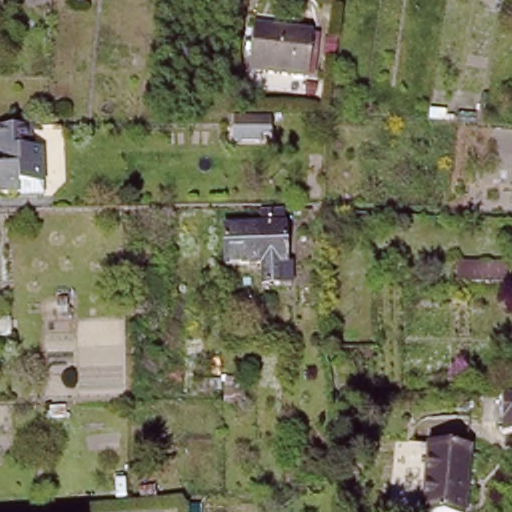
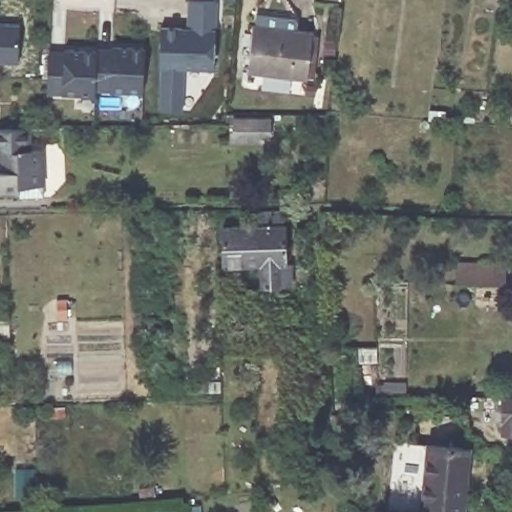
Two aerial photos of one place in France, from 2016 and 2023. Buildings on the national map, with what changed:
new [(213,70),(183,70),(181,110),(158,109),(161,26),(186,27),(188,1),(216,1),(213,70)]
unchanged [(246,74),(252,28),(269,30),(269,33),(296,36),(296,33),(304,34),(314,36),(308,81),(299,80),(246,74)]
new [(48,50),(63,50),(95,51),(95,46),(111,46),(111,45),(144,46),(143,93),(109,91),(109,89),(93,88),(93,95),(65,94),(62,92),(47,93),(48,50)]
new [(270,117),(271,137),(259,137),(259,143),(232,143),(231,117),(270,117)]
unchanged [(29,131),(30,151),(42,151),(43,186),(41,186),(42,194),(12,196),(11,195),(0,195),(0,132),(29,131)]
unchanged [(134,166),(133,186),(123,186),(123,166),(134,166)]
unchanged [(289,289),(259,291),(259,268),(220,266),(219,226),(284,223),(289,289)]
unchanged [(507,264),(506,289),(456,287),(457,261),(507,264)]
unchanged [(253,322),(254,333),(238,333),(237,323),(253,322)]
unchanged [(497,400),(497,406),(492,406),(491,400),(497,400)]
unchanged [(503,400),(512,400),(512,409),(503,410),(503,400)]
unchanged [(426,445),(473,448),(471,465),(466,512),(418,512),(424,465),(426,445)]

